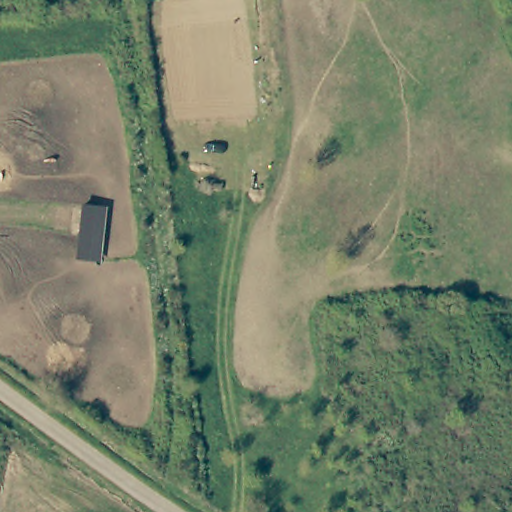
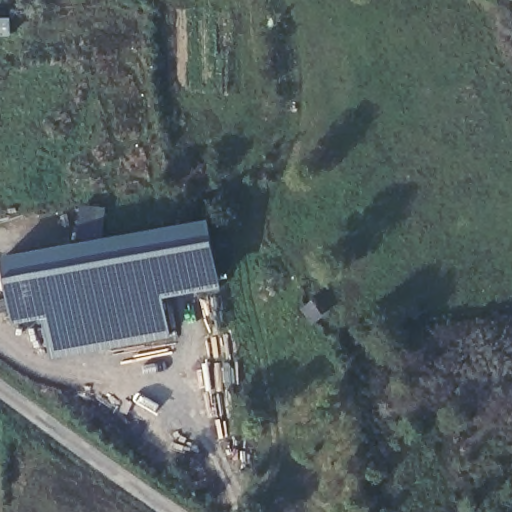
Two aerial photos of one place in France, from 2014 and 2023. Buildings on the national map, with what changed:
new [(14,322),(2,257),(210,219),(220,278),(14,322)]

